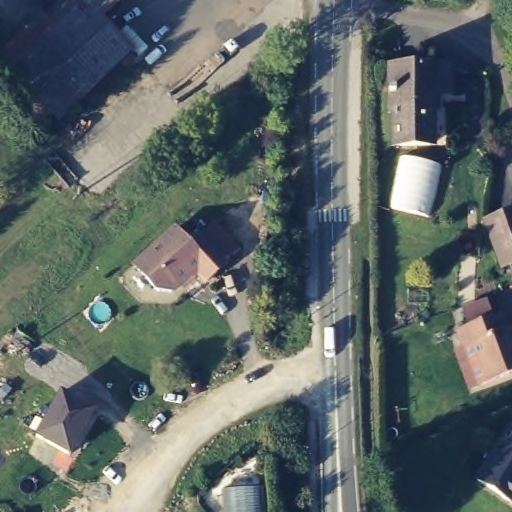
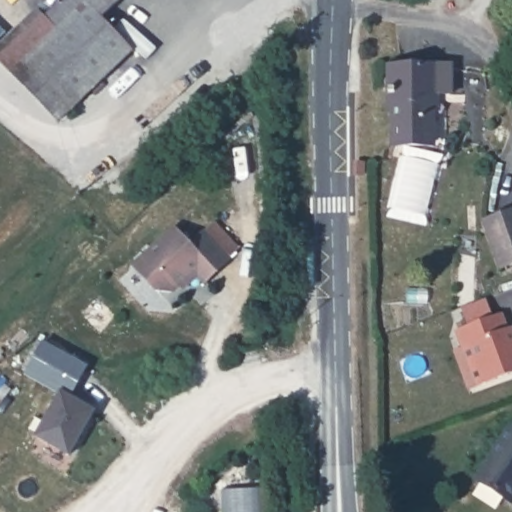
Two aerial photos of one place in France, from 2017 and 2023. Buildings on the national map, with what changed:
unchanged [(63,36),(48,19),(69,0),(126,0),(105,22),(134,55),(63,125),(18,80),(63,36)]
unchanged [(0,62),(0,52),(41,12),(48,19),(63,36),(18,80),(0,62)]
unchanged [(450,99),(430,101),(428,147),(392,146),(392,115),(388,114),(387,90),(394,90),(392,67),(451,67),(450,99)]
unchanged [(485,225),(512,214),(512,269),(503,272),(485,225)]
unchanged [(226,260),(204,279),(191,269),(168,290),(157,290),(132,264),(170,229),(186,242),(200,233),(226,260)]
unchanged [(512,350),(512,378),(483,390),(467,352),(459,355),(453,339),(464,334),(458,317),(481,308),(487,325),(496,321),(503,336),(506,335),(512,350)]
new [(45,342),(89,366),(72,397),(63,392),(61,396),(25,376),(45,342)]
unchanged [(63,392),(96,412),(71,458),(37,437),(63,392)]
unchanged [(508,431),(512,434),(512,506),(475,484),(508,431)]

